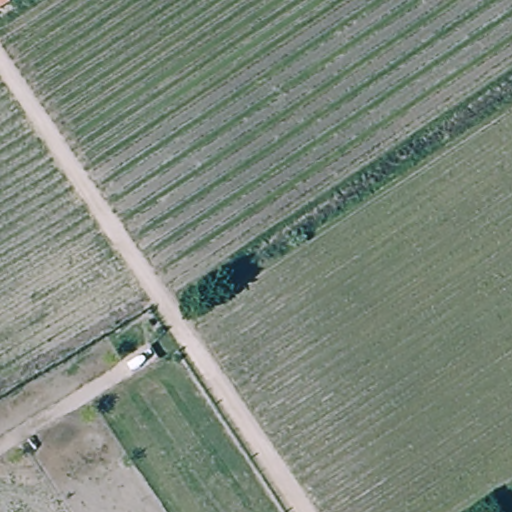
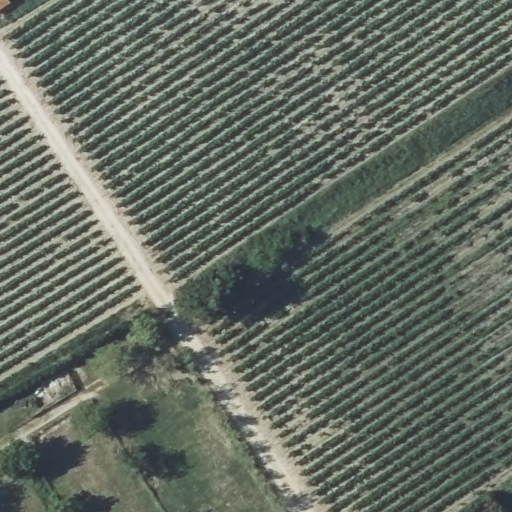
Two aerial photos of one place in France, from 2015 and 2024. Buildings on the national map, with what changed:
unchanged [(0,12),(0,0),(5,0),(9,6),(0,12)]

